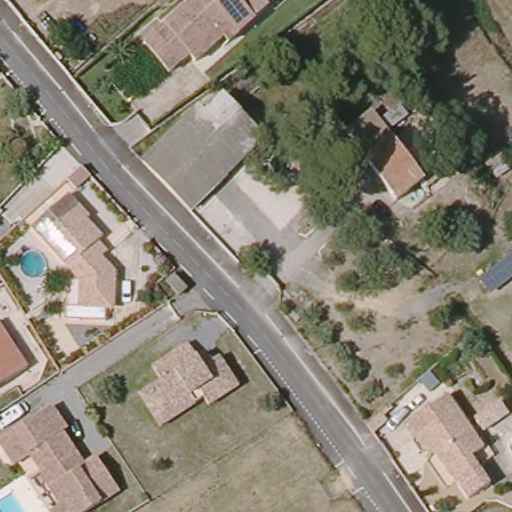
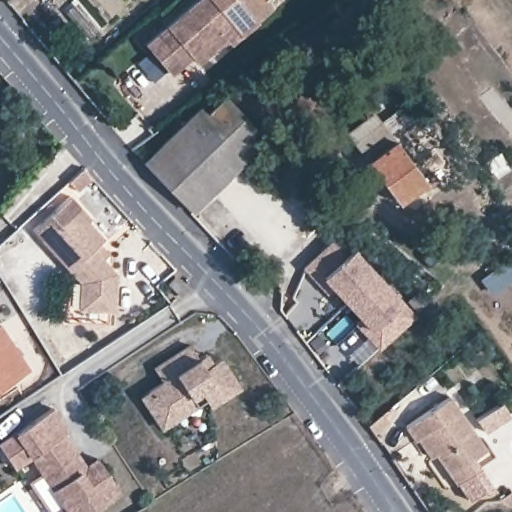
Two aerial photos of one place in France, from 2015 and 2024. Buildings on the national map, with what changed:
unchanged [(191,62),(186,55),(165,73),(141,44),(190,0),(259,0),(265,7),(235,34),(225,42),(220,37),(191,62)]
unchanged [(270,134),(253,151),(197,207),(149,157),(204,103),(211,110),(229,93),(263,127),(270,134)]
unchanged [(395,139),(367,161),(347,134),(375,113),(395,139)]
unchanged [(425,180),(435,173),(439,179),(426,190),(421,184),(397,202),(367,161),(395,139),(425,180)]
unchanged [(505,162),(492,171),(485,162),(500,153),(505,162)]
unchanged [(114,233),(109,238),(118,247),(113,253),(126,268),(124,305),(89,303),(91,277),(51,233),(88,200),(101,213),(98,216),(114,233)]
new [(414,315),(380,346),(305,266),(339,235),(414,315)]
unchanged [(188,288),(180,295),(168,283),(175,276),(188,288)]
unchanged [(13,335),(33,366),(0,387),(0,339),(2,342),(13,335)]
unchanged [(145,396),(154,390),(168,381),(159,368),(195,344),(203,358),(210,353),(217,363),(225,358),(244,387),(215,406),(211,399),(167,428),(145,396)]
unchanged [(470,494),(462,478),(455,482),(435,453),(430,456),(418,438),(415,440),(405,426),(449,395),(485,449),(474,456),(480,466),(490,479),(470,494)]
unchanged [(59,505),(25,453),(12,462),(0,445),(0,437),(47,406),(62,429),(60,431),(58,432),(80,465),(92,457),(96,463),(114,490),(81,512),(48,512),(59,505)]
unchanged [(389,422),(374,434),(368,425),(382,413),(389,422)]
unchanged [(512,492),(512,508),(496,501),(510,491),(512,492)]

